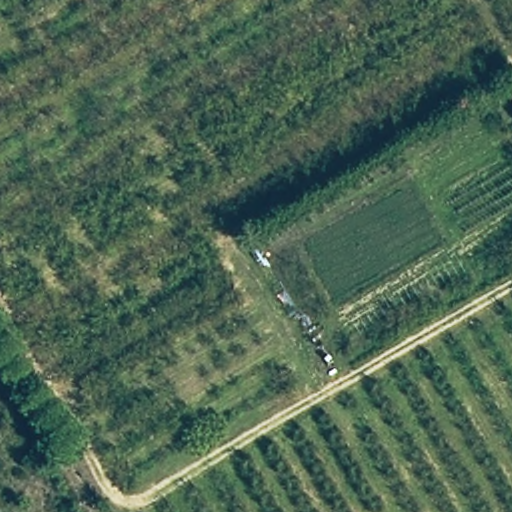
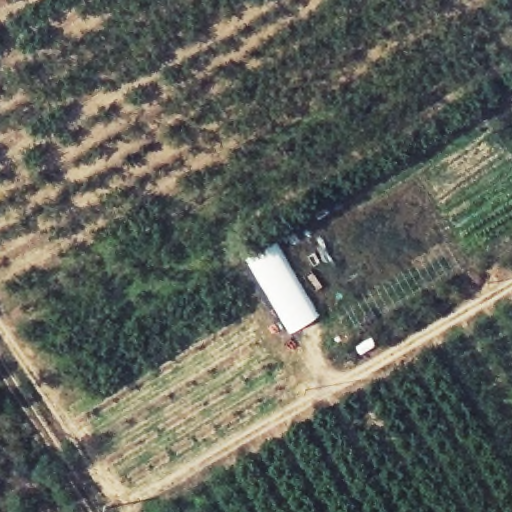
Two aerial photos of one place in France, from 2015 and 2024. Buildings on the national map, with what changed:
unchanged [(512,80),(512,99),(505,84),(512,80)]
new [(292,332),(247,260),(277,242),(319,317),(316,318),(292,332)]

